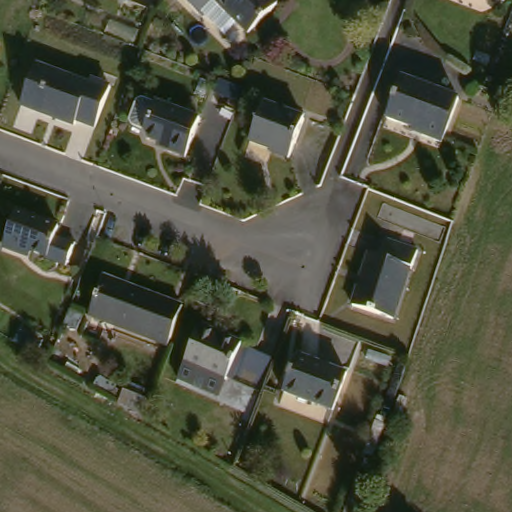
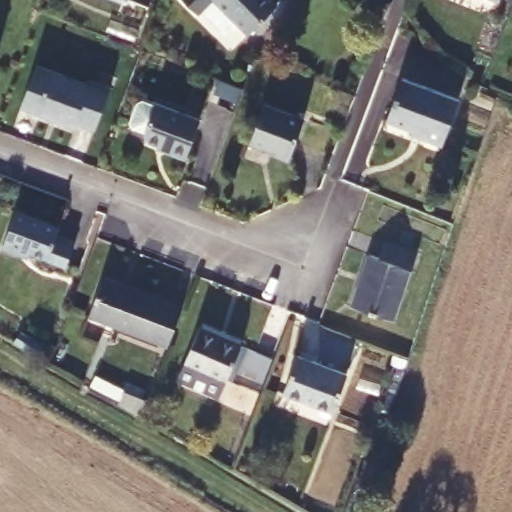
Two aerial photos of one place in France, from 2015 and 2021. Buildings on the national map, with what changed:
unchanged [(120,0),(126,0),(125,2),(120,0)]
unchanged [(202,10),(198,13),(186,0),(274,0),(277,4),(280,6),(275,11),(251,35),(239,23),(226,35),(202,10)]
unchanged [(0,45),(4,47),(0,56),(0,45)]
unchanged [(100,130),(81,123),(79,129),(25,108),(41,67),(93,86),(95,81),(116,88),(100,130)]
unchanged [(461,98),(445,144),(424,136),(426,133),(390,119),(406,77),(461,98)]
unchanged [(292,159),(275,153),(276,150),(253,142),(267,103),(307,118),(292,159)]
unchanged [(185,164),(167,158),(169,154),(147,147),(144,140),(145,138),(132,133),(131,128),(137,109),(139,104),(155,109),(199,125),(185,164)]
unchanged [(69,268),(52,262),(52,261),(35,254),(33,259),(7,250),(19,214),(62,228),(58,236),(77,243),(69,268)]
unchanged [(358,305),(376,253),(383,255),(388,240),(422,250),(417,267),(415,267),(397,318),(358,305)]
unchanged [(174,345),(96,317),(111,278),(189,307),(174,345)]
unchanged [(223,399),(182,382),(206,328),(246,346),(223,399)]
unchanged [(21,345),(27,334),(47,346),(41,357),(21,345)]
unchanged [(337,414),(288,394),(303,357),(352,377),(337,414)]
unchanged [(129,392),(152,401),(146,418),(124,405),(129,392)]
unchanged [(367,456),(378,424),(387,427),(376,459),(375,462),(367,456)]

